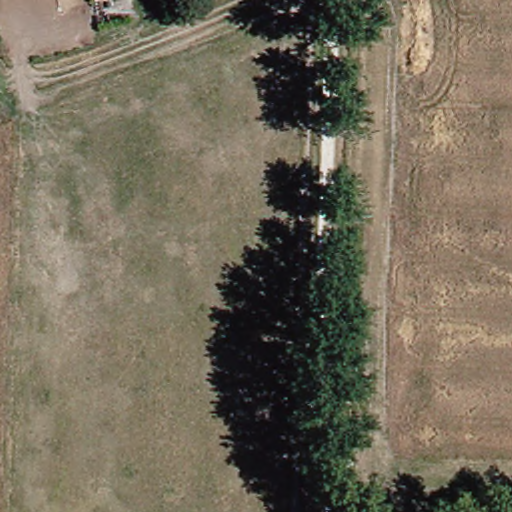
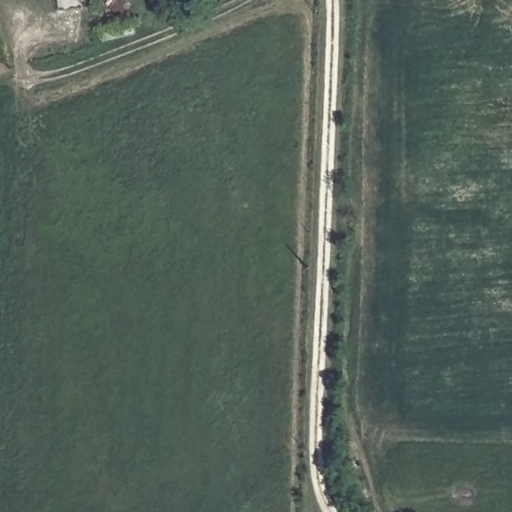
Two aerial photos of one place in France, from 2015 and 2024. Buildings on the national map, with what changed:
[]

